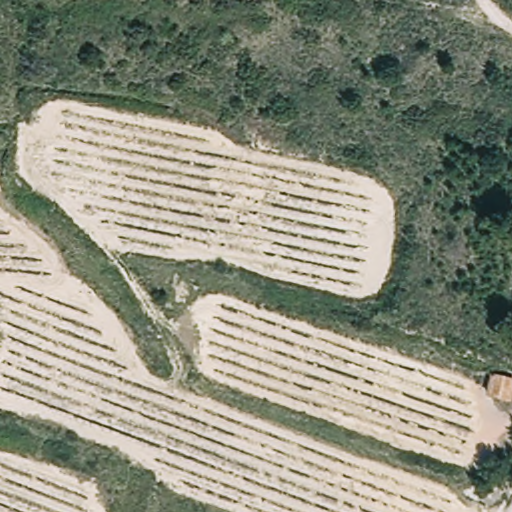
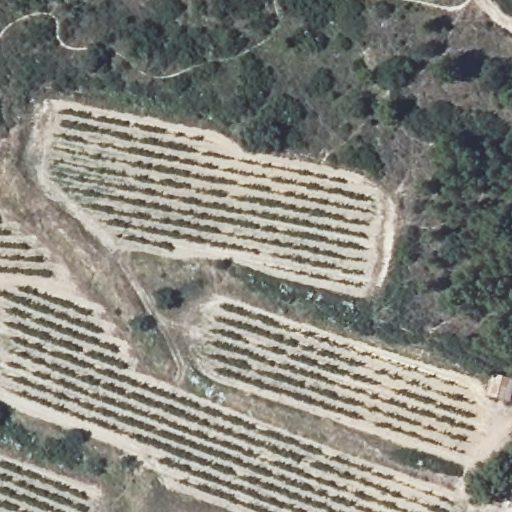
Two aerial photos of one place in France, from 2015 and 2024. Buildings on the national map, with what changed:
unchanged [(492,399),(496,376),(512,379),(512,399),(512,402),(492,399)]

